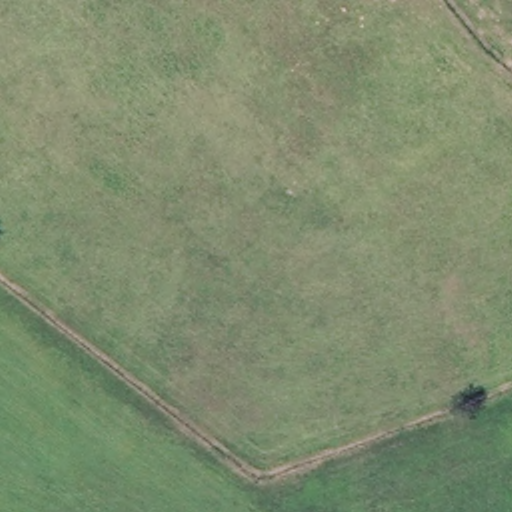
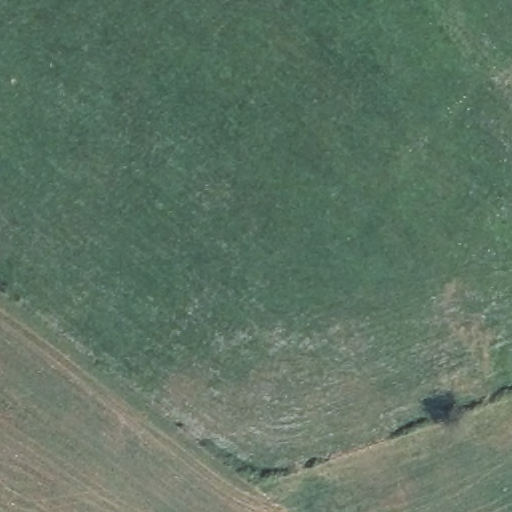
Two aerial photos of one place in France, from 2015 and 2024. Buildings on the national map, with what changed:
[]

